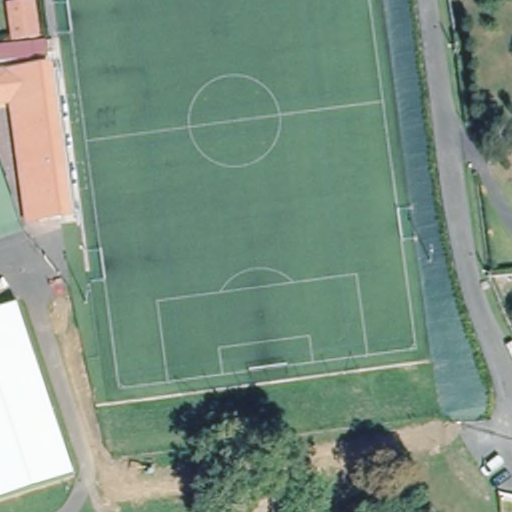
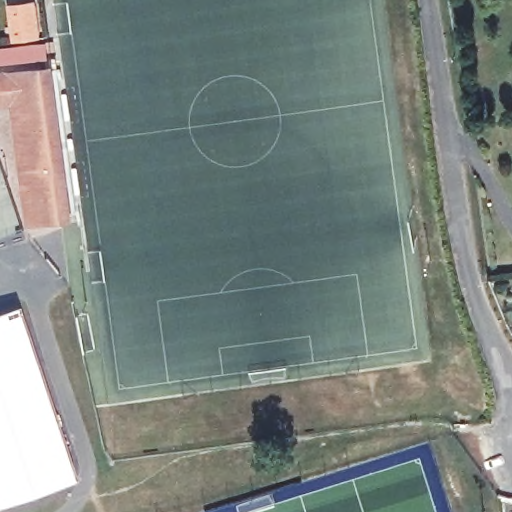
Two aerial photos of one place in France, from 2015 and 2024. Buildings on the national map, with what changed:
unchanged [(10,8),(31,5),(36,39),(15,41),(10,8)]
unchanged [(38,70),(53,68),(73,219),(59,220),(38,70)]
unchanged [(0,103),(0,75),(38,70),(59,220),(36,223),(31,224),(14,101),(0,103)]
unchanged [(74,477),(0,503),(0,313),(15,307),(74,477)]

